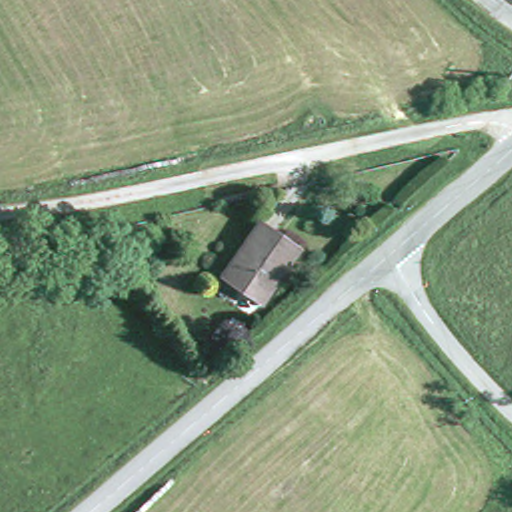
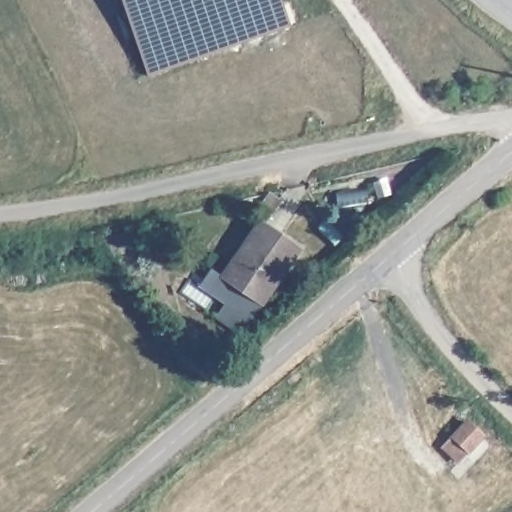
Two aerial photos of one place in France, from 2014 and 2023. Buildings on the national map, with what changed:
new [(290,25),(148,75),(122,0),(281,0),(290,25)]
unchanged [(259,302),(220,280),(255,225),(295,250),(259,302)]
new [(467,418),(486,434),(471,452),(469,451),(458,463),(441,447),(467,418)]

